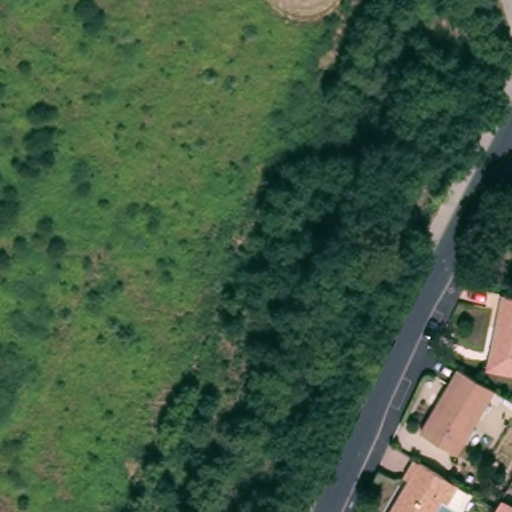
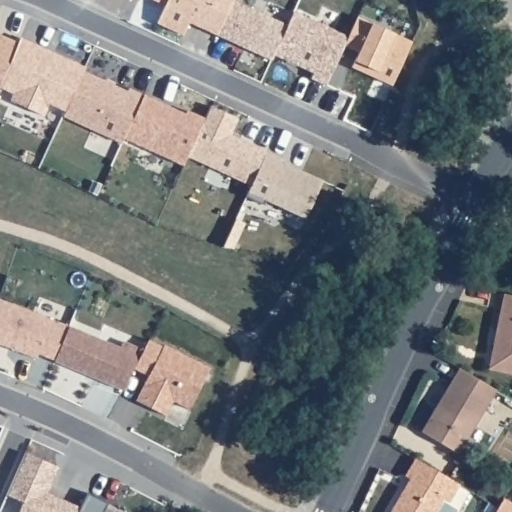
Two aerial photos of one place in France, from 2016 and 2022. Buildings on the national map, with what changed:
new [(157,23),(165,2),(167,0),(232,0),(217,32),(188,22),(183,34),(157,23)]
new [(165,2),(159,0),(166,0),(165,2)]
new [(232,0),(237,0),(287,23),(274,52),(271,57),(217,32),(232,0)]
new [(287,23),(293,9),(348,34),(344,43),(326,82),(311,75),(314,70),(274,52),(287,23)]
new [(375,74),(352,64),(359,49),(344,43),(348,34),(357,14),(412,39),(394,77),(392,82),(375,74)]
new [(18,40),(0,84),(0,33),(2,34),(18,40)]
new [(20,36),(37,44),(58,53),(85,66),(84,69),(66,108),(49,100),(43,113),(11,98),(15,90),(0,84),(18,40),(20,36)]
new [(66,108),(84,69),(127,89),(129,85),(144,92),(124,135),(122,140),(63,113),(66,108)]
new [(160,100),(171,105),(185,112),(187,108),(205,116),(188,154),(183,163),(124,135),(144,92),(160,100)]
new [(205,116),(210,103),(238,116),(231,132),(267,148),(251,183),(188,154),(205,116)]
new [(251,183),(267,148),(282,156),(281,159),(321,177),(304,215),(265,197),(262,201),(246,194),(251,183)]
unchanged [(492,349),(504,294),(512,296),(512,373),(510,373),(488,368),(492,349)]
new [(55,358),(38,351),(37,355),(16,347),(13,343),(10,345),(0,341),(0,297),(69,324),(55,358)]
new [(149,337),(163,344),(165,342),(210,365),(189,406),(173,398),(166,413),(136,398),(149,373),(135,366),(149,337)]
unchanged [(458,458),(421,436),(459,373),(495,395),(458,458)]
new [(77,512),(19,512),(24,500),(7,494),(26,450),(58,464),(47,490),(62,498),(80,506),(77,512)]
unchanged [(404,481),(415,463),(434,475),(453,486),(469,496),(460,512),(394,512),(409,483),(404,481)]
new [(108,501),(106,506),(118,512),(77,512),(80,506),(88,491),(108,501)]
unchanged [(512,508),(512,512),(497,512),(503,503),(512,508)]

